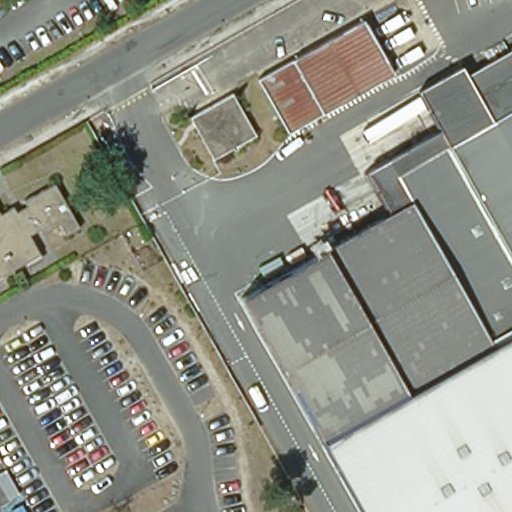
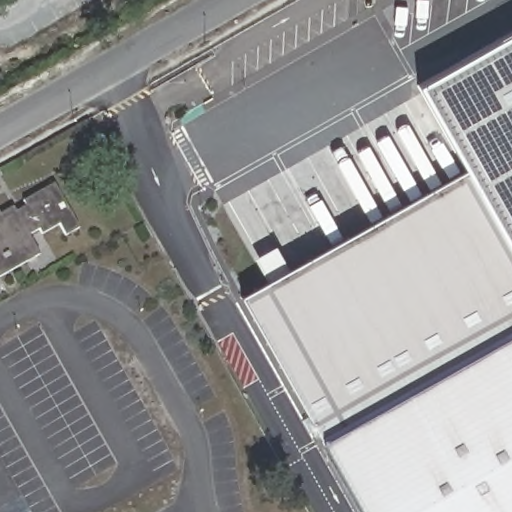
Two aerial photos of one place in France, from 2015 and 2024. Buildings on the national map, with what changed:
demolished [(365,20),(394,72),(291,130),(262,79),(365,20)]
unchanged [(512,34),(512,512),(360,512),(238,297),(320,254),(463,170),(419,86),(512,34)]
demolished [(234,95),(255,135),(215,156),(195,117),(234,95)]
unchanged [(15,209),(18,212),(29,205),(27,203),(56,186),(80,226),(67,232),(60,225),(46,234),(42,232),(33,237),(41,253),(0,276),(0,212),(3,215),(15,209)]

